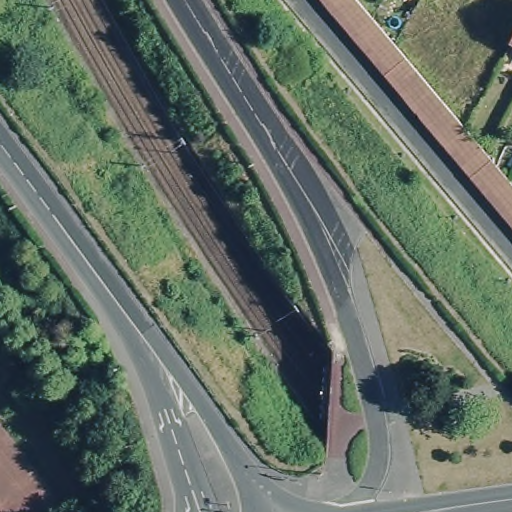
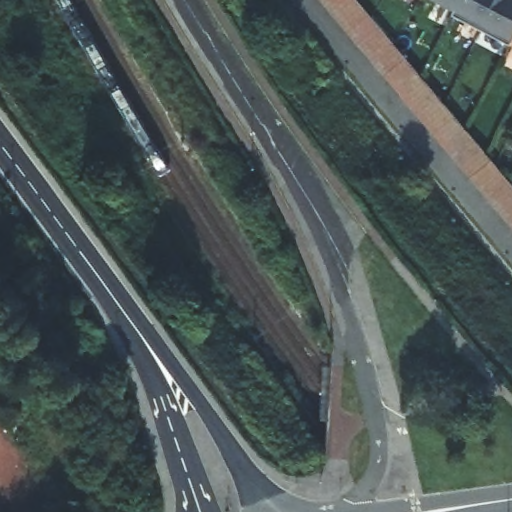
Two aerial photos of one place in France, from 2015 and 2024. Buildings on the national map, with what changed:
unchanged [(387,86),(375,71),(357,50),(346,37),(338,28),(330,18),(325,13),(315,0),(356,0),(383,33),(437,97),(459,123),(462,127),(482,151),(497,168),(505,178),(512,186),(512,234),(498,218),(487,204),(483,200),(463,175),(457,169),(442,152),(440,149),(437,145),(434,141),(415,119),(402,103),(387,86)]
new [(512,0),(512,38),(510,41),(431,0),(512,0)]
unchanged [(510,41),(512,38),(512,42),(510,41)]

